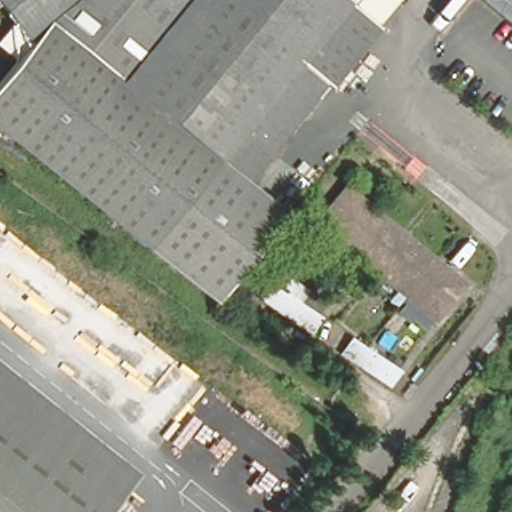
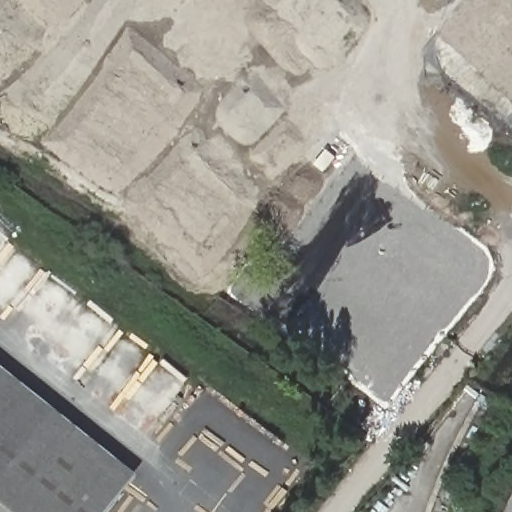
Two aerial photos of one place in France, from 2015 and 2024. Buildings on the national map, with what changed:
demolished [(376,23),(379,26),(331,84),(327,80),(248,174),(222,153),(221,155),(286,210),(233,272),(197,242),(167,218),(0,81),(0,67),(28,32),(24,29),(2,0),(395,0),(376,23)]
unchanged [(512,5),(506,0),(512,0),(512,5)]
demolished [(215,294),(149,239),(0,117),(0,81),(167,218),(197,242),(233,272),(215,294)]
demolished [(341,188),(461,283),(431,320),(312,225),(341,188)]
demolished [(280,274),(308,293),(300,305),(322,321),(310,338),(260,303),(280,274)]
demolished [(351,335),(401,369),(389,386),(339,352),(351,335)]
unchanged [(0,392),(0,362),(134,470),(119,487),(0,392)]
unchanged [(0,512),(0,392),(119,487),(100,512),(0,512)]

